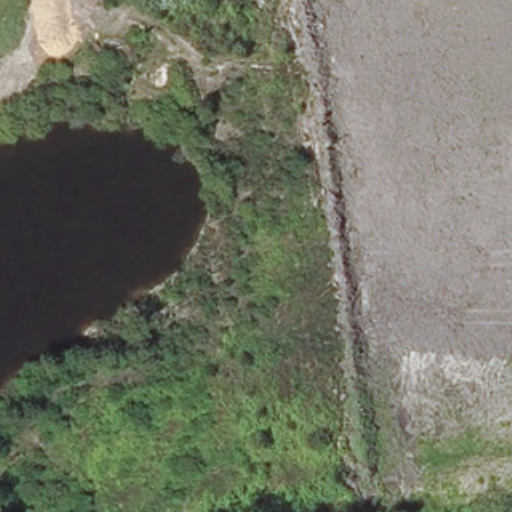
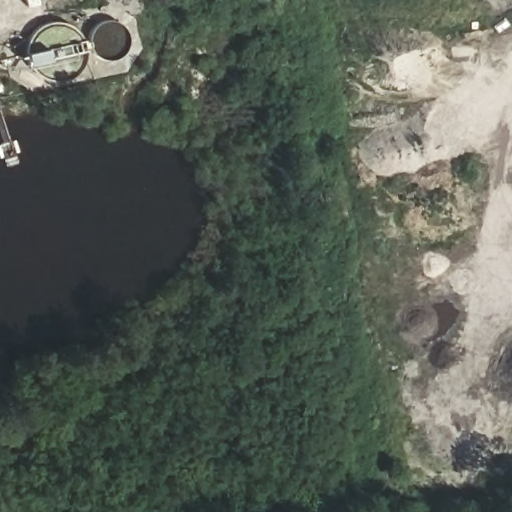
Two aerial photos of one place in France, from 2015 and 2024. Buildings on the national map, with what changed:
[]

